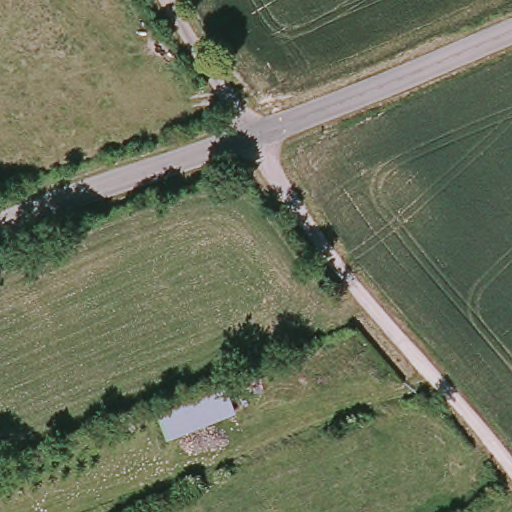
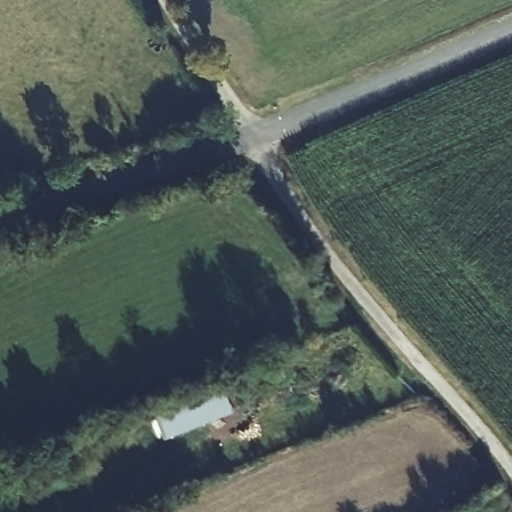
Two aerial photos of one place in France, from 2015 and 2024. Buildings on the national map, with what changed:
unchanged [(224,383),(235,409),(168,436),(157,409),(224,383)]

